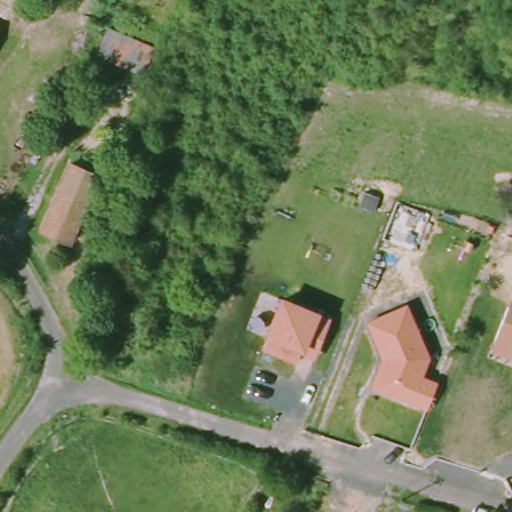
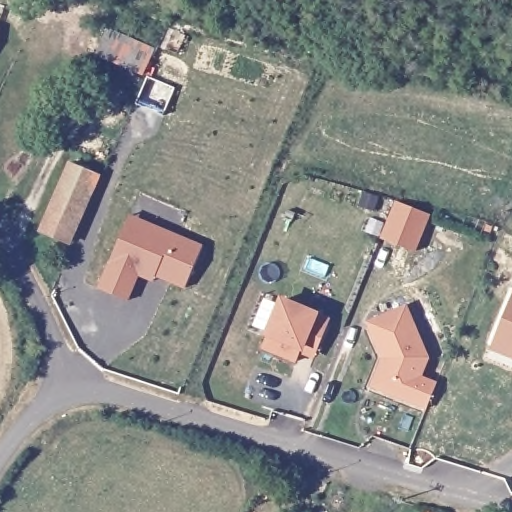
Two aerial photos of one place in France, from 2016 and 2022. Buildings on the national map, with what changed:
unchanged [(137,72),(92,51),(103,27),(148,48),(137,72)]
unchanged [(35,225),(63,163),(97,181),(71,241),(35,225)]
new [(395,198),(428,210),(414,248),(381,235),(395,198)]
new [(128,300),(98,287),(130,215),(202,245),(185,288),(155,276),(152,282),(138,277),(128,300)]
unchanged [(283,298),(322,314),(321,317),(333,322),(317,364),(302,359),(299,367),(263,351),(266,338),(283,298)]
unchanged [(431,358),(423,376),(438,382),(428,409),(371,387),(382,359),(366,321),(408,304),(431,358)]
unchanged [(512,362),(492,353),(512,306),(512,362)]
unchanged [(340,478),(336,494),(308,487),(311,471),(340,478)]
unchanged [(427,504),(433,512),(418,512),(427,504)]

